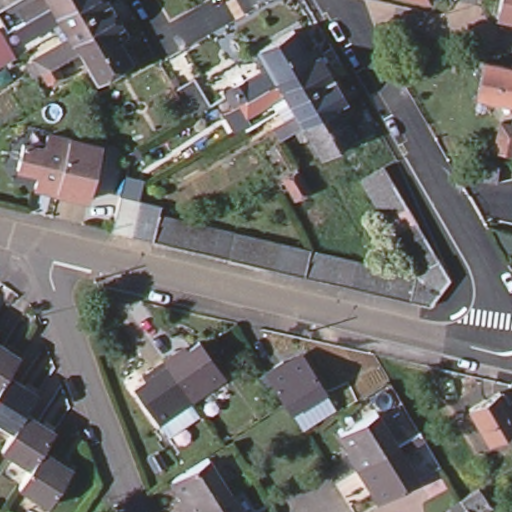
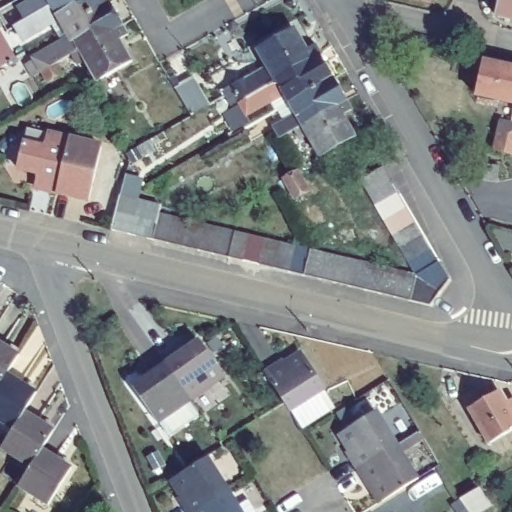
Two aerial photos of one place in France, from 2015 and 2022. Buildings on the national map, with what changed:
unchanged [(37,72),(32,65),(39,62),(34,54),(62,38),(57,29),(60,27),(55,19),(23,37),(15,23),(25,17),(17,2),(22,0),(110,0),(122,22),(128,32),(120,36),(132,58),(97,78),(84,56),(77,60),(72,52),(57,60),(62,69),(47,77),(42,69),(37,72)]
unchanged [(430,2),(420,0),(430,0),(430,2)]
unchanged [(500,0),(512,0),(512,19),(497,16),(500,0)]
unchanged [(0,62),(0,24),(17,52),(0,62)]
unchanged [(287,104),(282,95),(275,99),(245,116),(237,102),(232,92),(229,87),(265,66),(257,50),(292,29),(305,51),(313,47),(319,57),(332,79),(345,101),(350,111),(342,115),(354,136),(318,157),(306,136),(298,140),(294,131),(279,140),(272,128),(266,117),(287,104)]
unchanged [(505,64),(507,61),(512,62),(512,91),(510,102),(472,92),(480,57),(505,64)]
unchanged [(175,87),(192,76),(211,104),(192,116),(175,87)]
unchanged [(512,91),(512,102),(510,102),(512,91)]
unchanged [(493,151),(500,123),(510,126),(512,126),(512,156),(504,154),(493,151)]
unchanged [(104,148),(91,201),(37,187),(40,174),(20,169),(26,144),(47,149),(50,135),(104,148)]
unchanged [(498,170),(495,186),(468,179),(472,163),(498,170)]
unchanged [(240,261),(224,257),(209,253),(195,250),(179,246),(165,242),(150,239),(129,234),(108,229),(117,196),(137,201),(150,204),(156,206),(155,214),(170,217),(185,221),(200,225),(215,228),(230,232),(245,235),(260,239),(276,242),(290,246),(305,250),(310,251),(320,254),(336,257),(352,261),(366,264),(380,267),(397,272),(412,275),(404,262),(395,247),(387,234),(380,221),(372,207),(364,193),(355,179),(378,166),(387,180),(387,181),(395,194),(403,207),(410,221),(419,234),(427,248),(435,262),(445,280),(436,292),(425,305),(406,300),(391,297),(375,293),(361,290),(347,286),(331,282),(315,278),(300,275),(285,271),(270,268),(255,264),(240,261)]
unchanged [(293,200),(287,189),(282,179),(295,170),(302,182),(307,192),(293,200)]
unchanged [(160,349),(178,338),(180,342),(197,332),(220,368),(185,390),(160,349)]
unchanged [(18,351),(7,370),(0,380),(0,339),(18,351)]
unchanged [(281,392),(261,361),(279,352),(281,356),(297,346),(319,382),(330,400),(297,419),(286,401),(281,392)]
unchanged [(185,390),(184,391),(194,407),(162,427),(152,411),(152,412),(130,375),(146,363),(144,360),(160,349),(185,390)]
unchanged [(7,370),(36,388),(25,407),(12,426),(0,418),(0,380),(7,370)]
unchanged [(470,408),(500,392),(507,402),(512,400),(512,431),(490,443),(470,408)]
unchanged [(12,426),(25,407),(54,425),(42,443),(30,462),(0,444),(12,426)]
unchanged [(357,470),(348,453),(352,451),(342,433),(377,411),(398,445),(357,470)]
unchanged [(30,462),(42,443),(70,461),(49,497),(19,481),(30,462)]
unchanged [(382,502),(372,485),(368,487),(357,470),(398,445),(420,478),(382,502)]
unchanged [(185,511),(175,493),(179,491),(169,475),(205,452),(227,486),(185,511)]
unchanged [(227,486),(242,512),(186,512),(185,511),(227,486)]
unchanged [(492,504),(480,512),(469,512),(460,499),(479,487),(492,504)]

